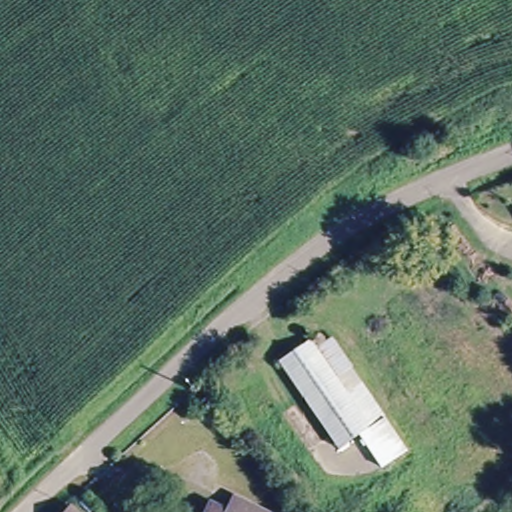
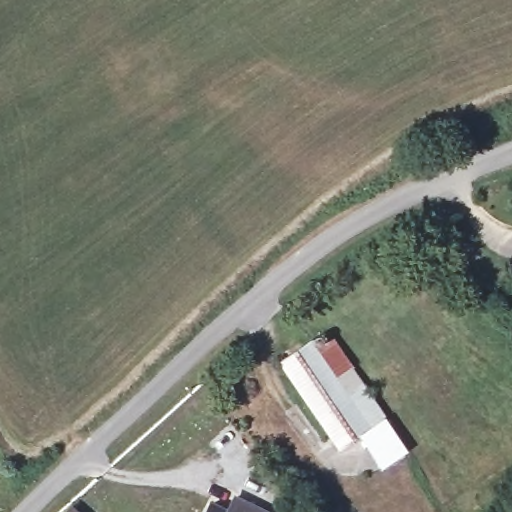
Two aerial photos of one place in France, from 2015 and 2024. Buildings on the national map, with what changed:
unchanged [(386,466),(362,434),(342,449),(281,363),(310,342),(316,351),(332,339),(351,366),(410,448),(386,466)]
unchanged [(248,503),(261,512),(241,512),(248,503)]
unchanged [(69,508),(73,512),(65,512),(69,508)]

